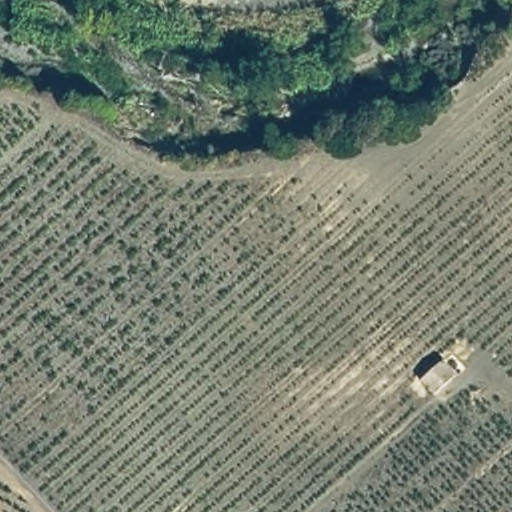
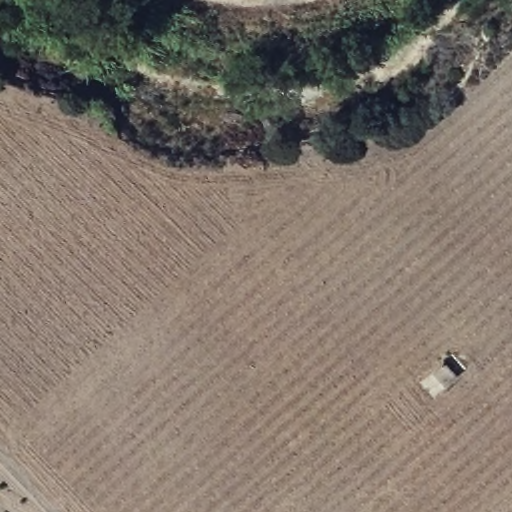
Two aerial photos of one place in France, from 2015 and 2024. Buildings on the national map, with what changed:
unchanged [(462,369),(436,389),(421,373),(448,349),(462,369)]

